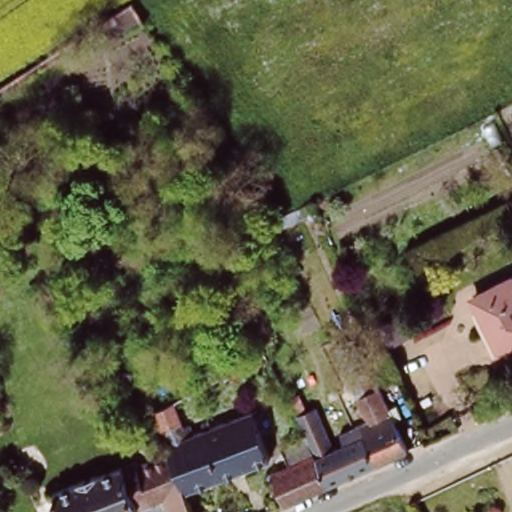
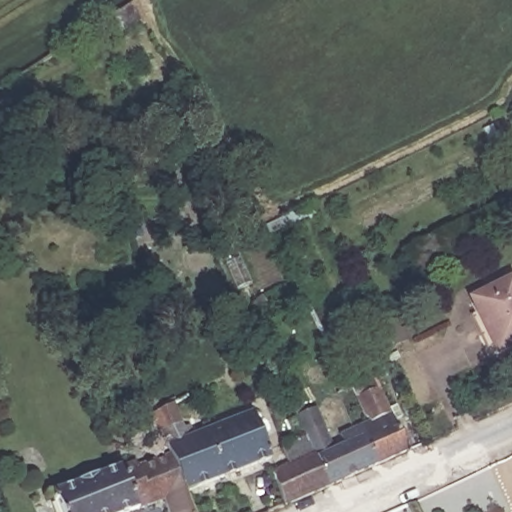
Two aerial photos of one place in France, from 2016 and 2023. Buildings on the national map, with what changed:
unchanged [(135,21),(105,41),(95,26),(127,6),(135,21)]
unchanged [(312,218),(269,238),(264,227),(311,204),(312,218)]
unchanged [(510,277),(512,282),(512,342),(494,351),(481,323),(485,311),(484,307),(480,308),(479,305),(474,294),(510,277)]
unchanged [(359,438),(355,440),(349,427),(364,420),(362,416),(360,417),(347,386),(361,379),(356,368),(364,365),(403,451),(370,465),(359,438)]
unchanged [(290,397),(296,410),(290,413),(284,400),(290,397)]
unchanged [(144,418),(165,406),(178,430),(184,426),(189,435),(200,430),(197,424),(204,421),(207,428),(248,411),(267,457),(183,492),(182,492),(165,454),(164,455),(144,418)]
unchanged [(282,466),(275,450),(297,439),(300,437),(298,432),(290,416),(308,409),(315,424),(327,449),(339,444),(335,434),(347,428),(349,427),(355,440),(359,438),(370,465),(278,507),(265,475),(282,466)]
unchanged [(132,467),(164,455),(165,454),(182,492),(183,492),(190,512),(162,512),(158,500),(125,512),(55,512),(52,506),(46,508),(42,497),(47,494),(47,493),(130,462),(132,467)]

